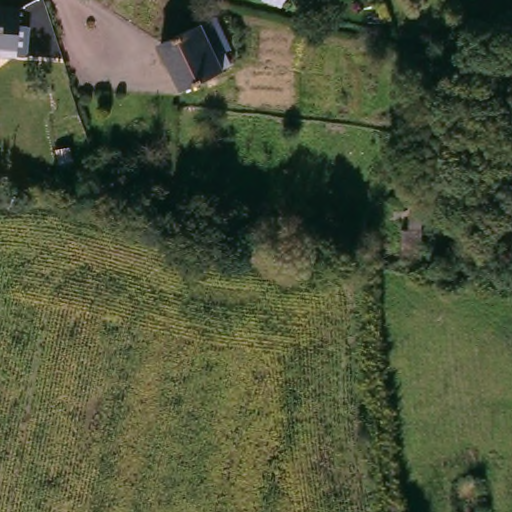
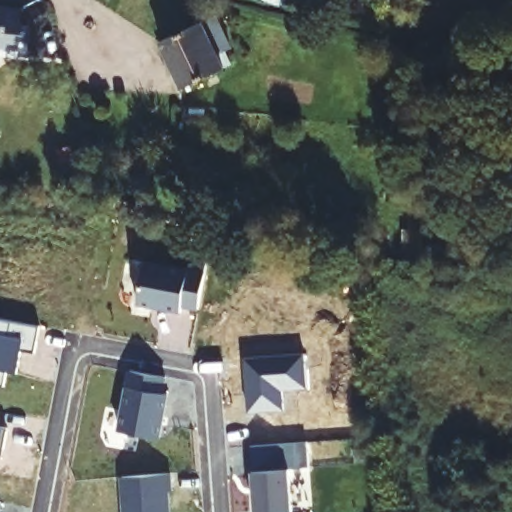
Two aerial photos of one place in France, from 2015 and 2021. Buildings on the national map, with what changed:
unchanged [(6,4),(24,5),(23,23),(33,23),(32,53),(22,53),(21,61),(4,61),(4,43),(0,43),(0,3),(6,3),(6,4)]
unchanged [(204,21),(220,14),(236,46),(229,49),(234,62),(223,67),(181,87),(160,43),(204,21)]
new [(145,262),(205,273),(198,309),(182,306),(180,312),(137,303),(145,262)]
new [(35,353),(20,351),(16,373),(6,371),(4,386),(0,385),(0,319),(40,326),(35,353)]
new [(304,354),(306,388),(281,390),(283,410),(248,413),(246,392),(250,392),(249,374),(245,374),(244,358),(304,354)]
new [(129,371),(165,377),(161,394),(167,395),(159,438),(118,430),(129,371)]
new [(0,427),(7,428),(4,449),(2,458),(0,458),(0,427)]
new [(252,472),(250,446),(287,444),(307,443),(309,468),(288,469),(292,512),(255,512),(252,472)]
new [(169,474),(170,491),(166,492),(168,512),(124,512),(121,477),(169,474)]

